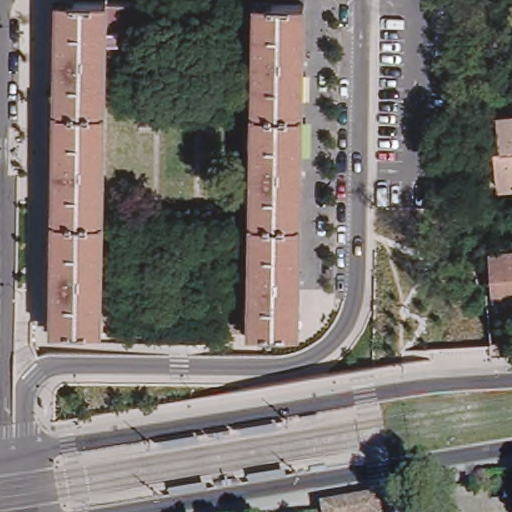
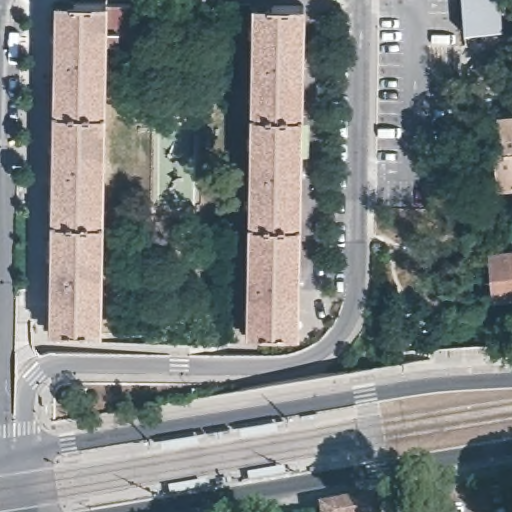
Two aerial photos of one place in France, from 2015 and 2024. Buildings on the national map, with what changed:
unchanged [(55,331),(59,0),(133,0),(132,51),(108,50),(104,332),(55,331)]
unchanged [(307,331),(257,330),(262,0),(312,0),(307,331)]
new [(504,30),(463,35),(461,0),(502,0),(504,30)]
unchanged [(490,145),(502,144),(499,110),(512,109),(512,181),(494,182),(490,145)]
unchanged [(493,231),(512,230),(512,288),(497,289),(494,244),(493,231)]
unchanged [(491,342),(502,341),(503,351),(492,353),(491,342)]
demolished [(490,365),(502,365),(502,374),(490,376),(490,365)]
unchanged [(379,512),(323,512),(322,502),(323,501),(377,491),(377,495),(379,512)]

